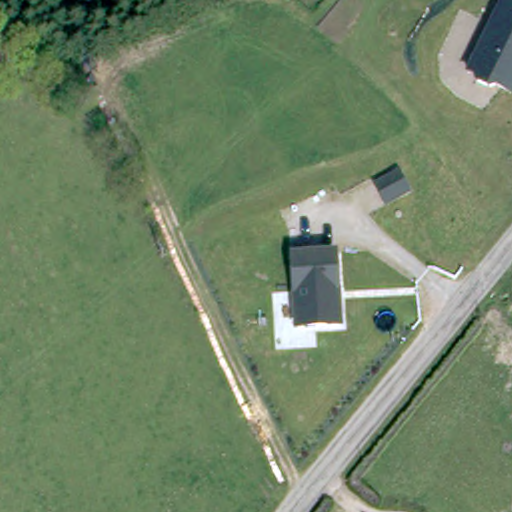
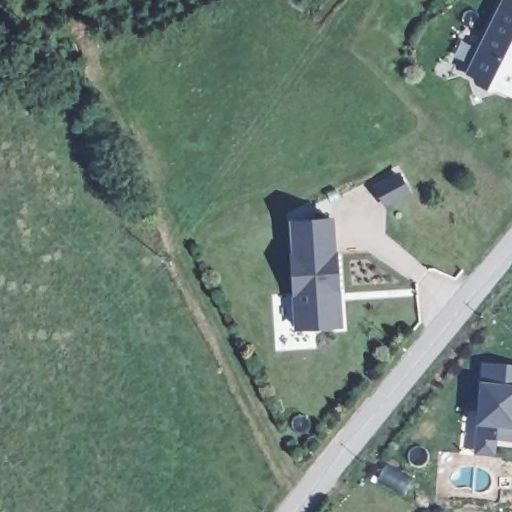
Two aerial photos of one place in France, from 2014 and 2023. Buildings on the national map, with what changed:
unchanged [(465,75),(502,0),(512,0),(512,99),(465,75)]
unchanged [(379,167),(388,185),(366,196),(357,180),(379,167)]
new [(293,254),(291,219),(336,217),(336,251),(293,254)]
unchanged [(341,323),(298,325),(293,254),(336,251),(338,287),(339,299),(341,323)]
new [(497,456),(473,453),(477,428),(481,385),(482,363),(512,367),(512,445),(499,443),(497,456)]

